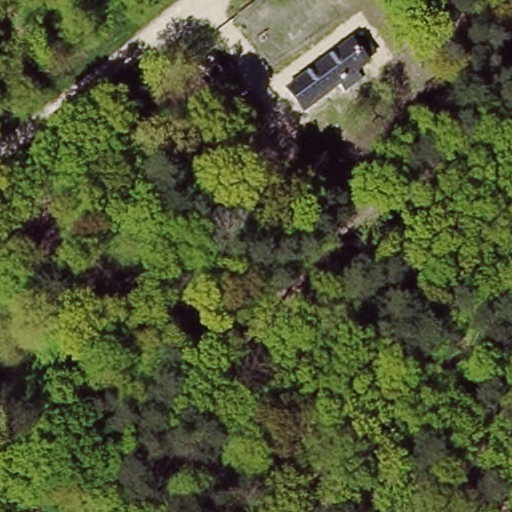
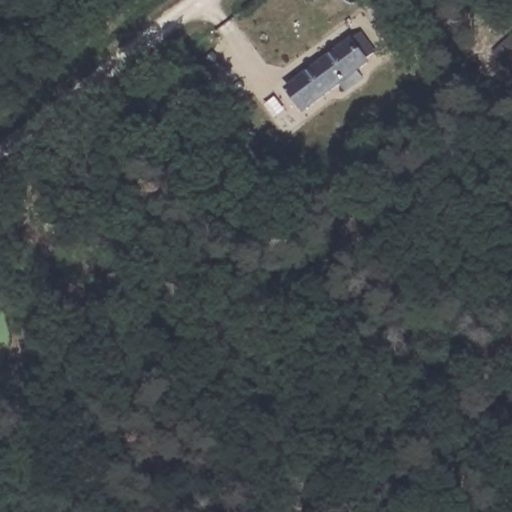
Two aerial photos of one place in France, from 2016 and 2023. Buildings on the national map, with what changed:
unchanged [(275,89),(345,35),(360,55),(340,71),(346,79),(330,91),(324,84),(291,110),(275,89)]

